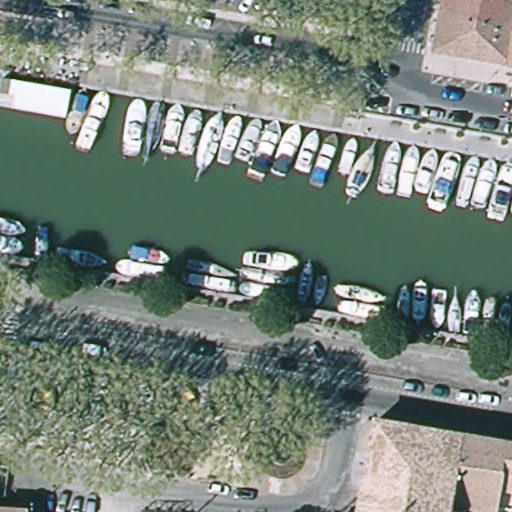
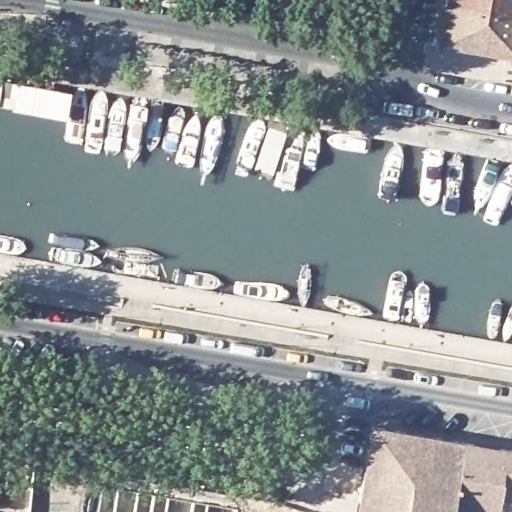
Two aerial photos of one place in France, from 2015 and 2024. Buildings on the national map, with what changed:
unchanged [(452,0),(512,0),(512,55),(444,44),(450,11),(452,1),(452,0)]
unchanged [(381,423),(471,439),(460,499),(458,512),(365,512),(381,423)]
unchanged [(460,499),(471,439),(512,446),(512,469),(505,509),(504,512),(458,512),(460,499)]
unchanged [(512,469),(512,510),(505,509),(512,469)]

